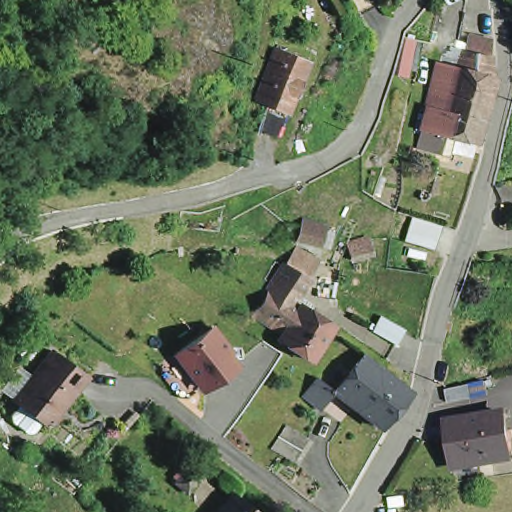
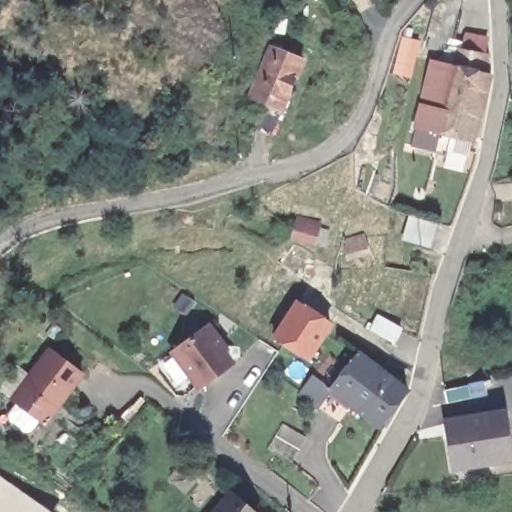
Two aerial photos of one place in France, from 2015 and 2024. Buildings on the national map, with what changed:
unchanged [(447,157),(434,154),(411,147),(415,132),(422,106),(430,60),(447,65),(445,69),(451,54),(458,55),(463,38),(484,43),(482,60),(488,61),(489,81),(471,147),(463,174),(443,168),(447,157)]
unchanged [(248,98),(271,47),(302,60),(281,112),(271,135),(253,127),(264,104),(248,98)]
unchanged [(293,239),(298,228),(317,237),(322,239),(317,250),(312,247),(293,239)]
unchanged [(284,332),(256,313),(274,285),(287,264),(294,254),(315,267),(309,277),(311,278),(297,300),(303,303),(284,332)]
unchanged [(284,332),(303,303),(334,323),(311,357),(281,337),(284,332)]
unchanged [(379,320),(397,331),(390,341),(372,330),(379,320)]
unchanged [(169,352),(213,326),(236,361),(199,392),(169,352)]
unchanged [(404,393),(400,400),(378,428),(343,400),(329,390),(358,353),(371,363),(404,389),(404,393)]
unchanged [(14,407),(50,358),(83,382),(48,431),(14,407)]
unchanged [(315,379),(329,390),(318,407),(300,393),(313,377),(315,379)]
unchanged [(447,392),(469,387),(472,397),(449,402),(447,392)]
unchanged [(444,426),(499,417),(507,462),(452,471),(444,426)]
unchanged [(268,447),(275,434),(281,422),(306,435),(299,448),(294,460),(268,447)]
new [(52,512),(0,512),(0,475),(52,512)]
unchanged [(239,512),(214,512),(224,500),(239,512)]

